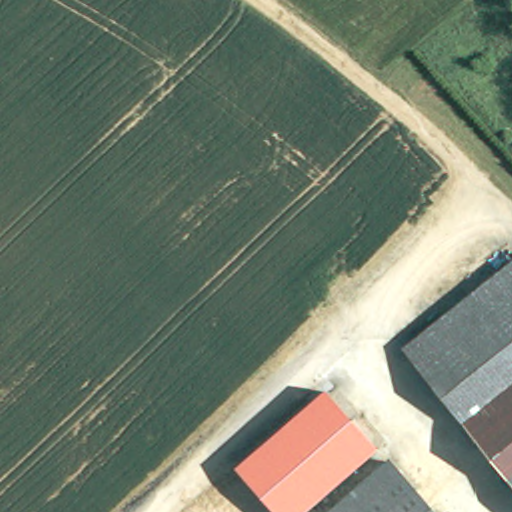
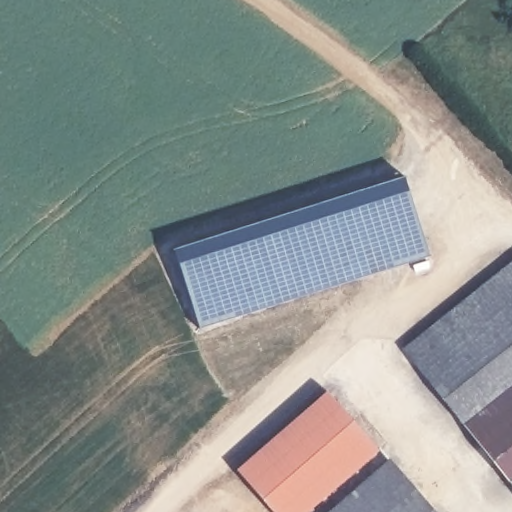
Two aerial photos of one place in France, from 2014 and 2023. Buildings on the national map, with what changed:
new [(430,254),(202,327),(175,248),(405,175),(430,254)]
unchanged [(409,355),(512,266),(512,480),(409,355)]
unchanged [(382,451),(313,512),(273,512),(236,472),(328,390),(382,451)]
unchanged [(397,462),(440,512),(339,512),(397,462)]

